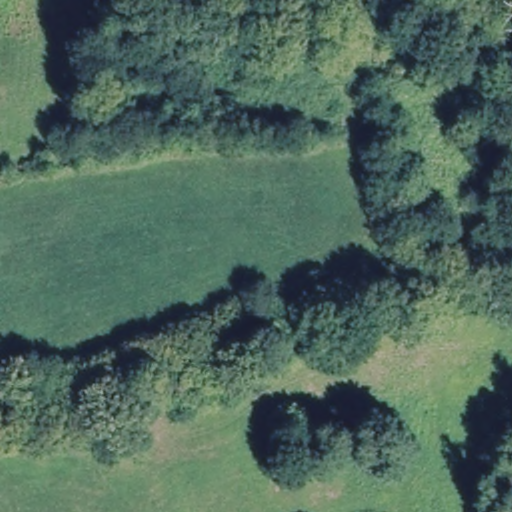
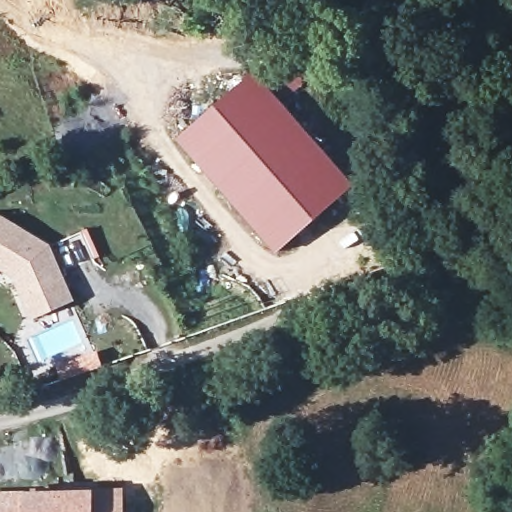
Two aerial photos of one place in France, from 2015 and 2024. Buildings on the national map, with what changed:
new [(175,138),(254,70),(354,183),(276,253),(175,138)]
new [(13,278),(0,269),(0,213),(51,244),(74,300),(30,319),(13,278)]
new [(22,490),(93,488),(124,487),(124,512),(0,512),(0,491),(22,490)]

